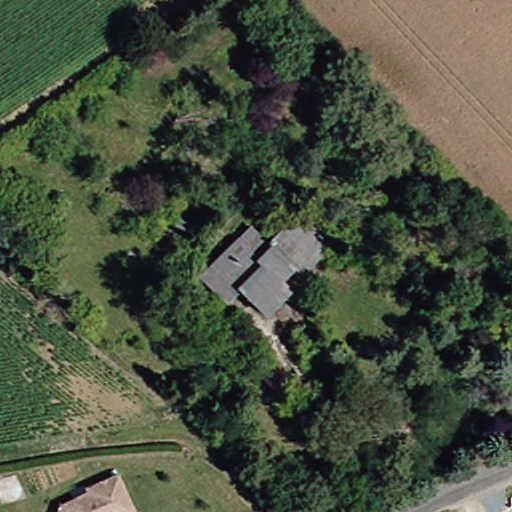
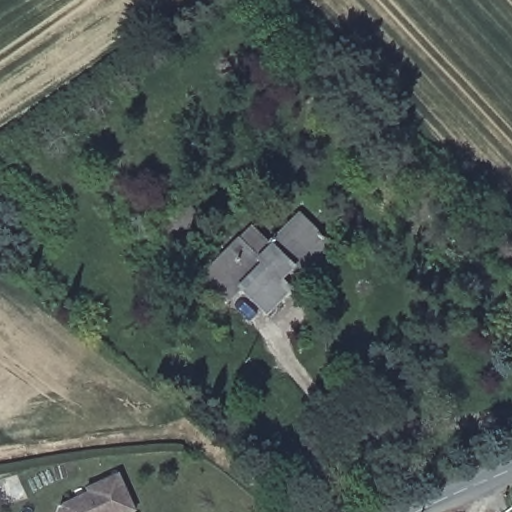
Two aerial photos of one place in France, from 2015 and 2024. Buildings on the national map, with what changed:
unchanged [(136,227),(119,209),(129,198),(149,216),(136,227)]
unchanged [(170,249),(157,235),(164,229),(177,218),(188,232),(170,249)]
unchanged [(228,254),(239,244),(259,264),(272,253),(269,248),(299,220),(325,246),(292,279),(284,273),(274,284),(284,295),(283,300),(281,298),(228,254)]
unchanged [(261,317),(237,293),(227,302),(203,279),(228,254),(281,298),(261,317)]
unchanged [(56,507),(84,496),(82,492),(114,479),(129,512),(54,512),(56,507)]

